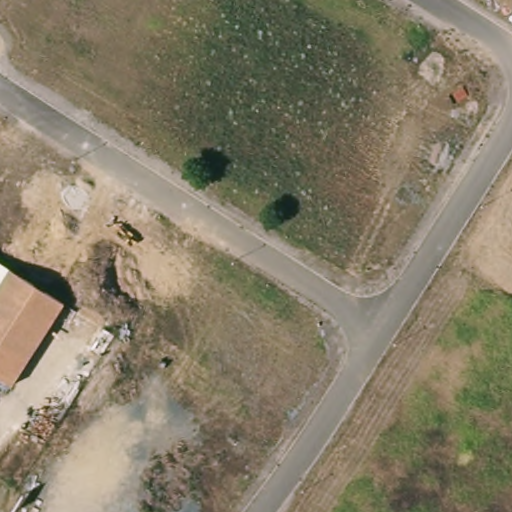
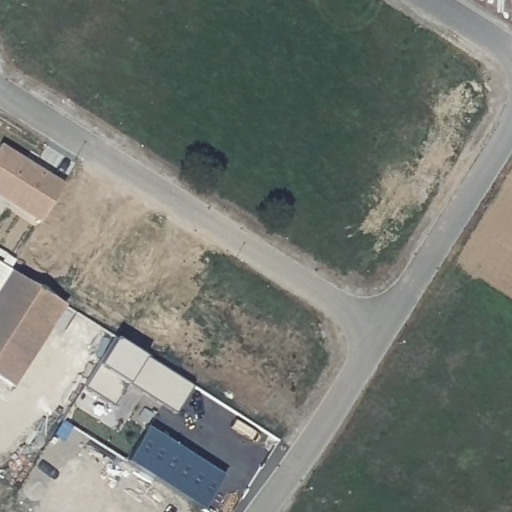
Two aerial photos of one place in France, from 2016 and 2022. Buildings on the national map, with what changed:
new [(39,219),(0,194),(0,142),(62,183),(39,219)]
unchanged [(10,383),(0,377),(0,278),(7,267),(62,302),(10,383)]
new [(98,365),(115,337),(144,356),(191,386),(174,411),(126,381),(111,403),(82,387),(98,365)]
new [(148,427),(223,475),(201,507),(126,461),(148,427)]

